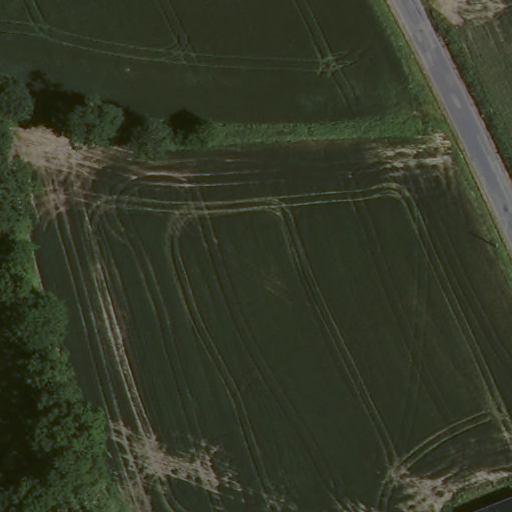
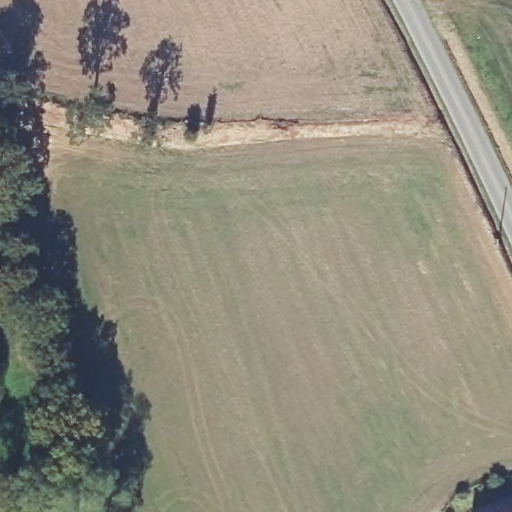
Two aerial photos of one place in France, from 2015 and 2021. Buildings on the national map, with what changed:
unchanged [(476,512),(512,499),(512,512),(476,512)]

